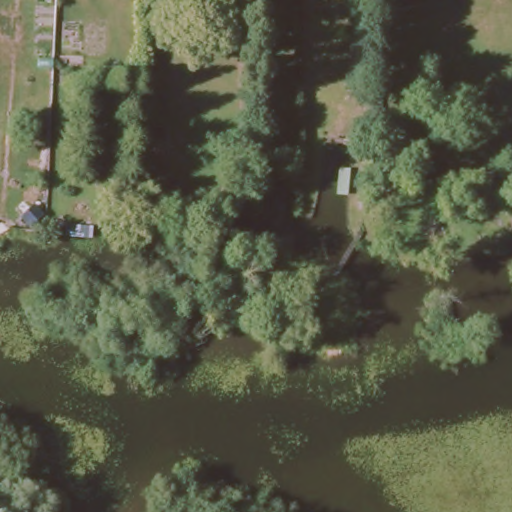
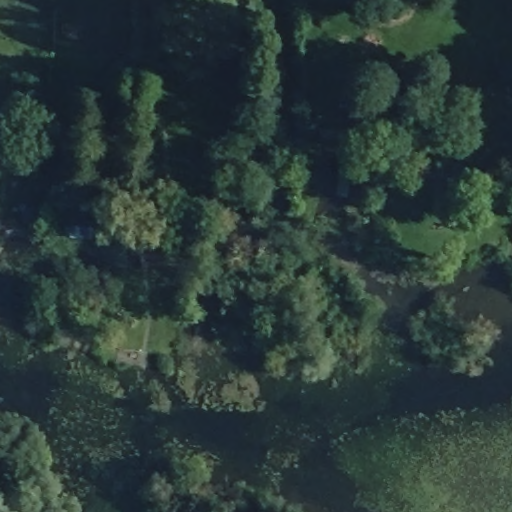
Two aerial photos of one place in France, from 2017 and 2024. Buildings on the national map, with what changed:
unchanged [(337,167),(349,167),(348,194),(344,194),(336,193),(336,188),(337,167)]

